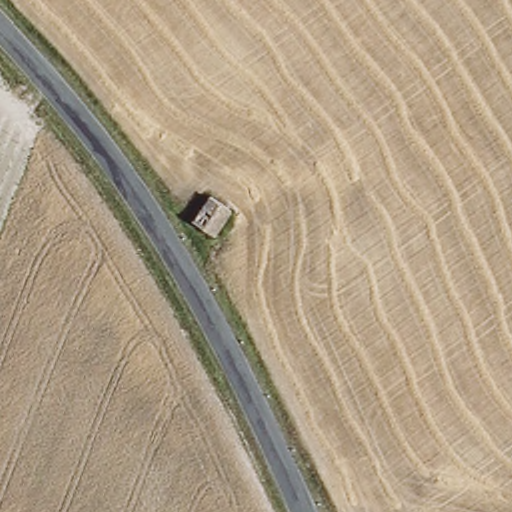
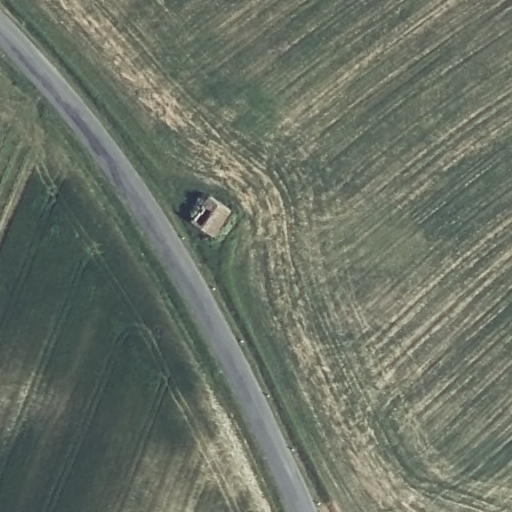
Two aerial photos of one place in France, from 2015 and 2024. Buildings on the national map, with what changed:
unchanged [(190,216),(211,190),(232,206),(210,232),(190,216)]

